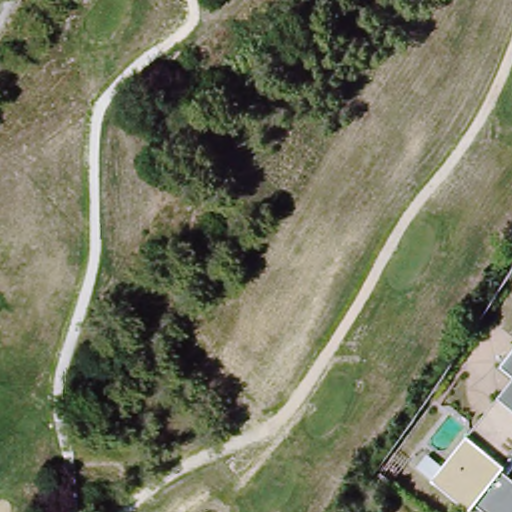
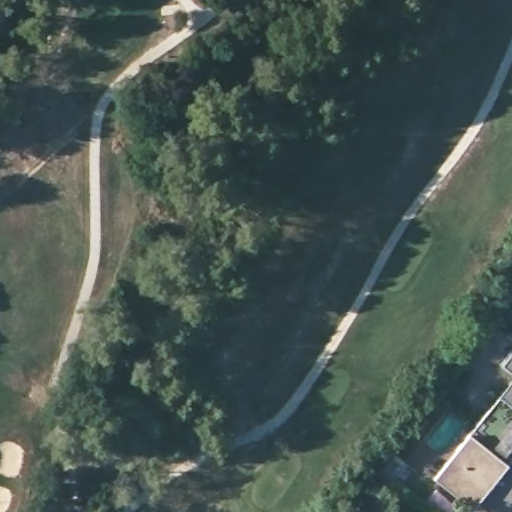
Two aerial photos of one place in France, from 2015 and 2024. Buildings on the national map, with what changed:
unchanged [(512,351),(512,378),(500,366),(512,351)]
unchanged [(512,406),(498,395),(512,378),(512,406)]
unchanged [(512,455),(475,501),(471,507),(433,477),(472,429),(498,395),(512,406),(512,455)]
unchanged [(471,507),(475,501),(512,455),(512,512),(479,512),(471,507)]

